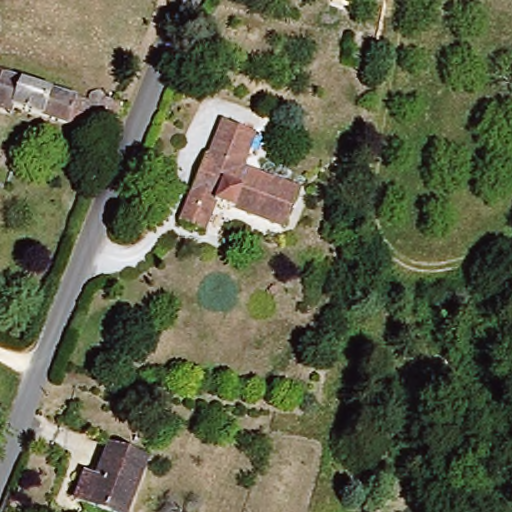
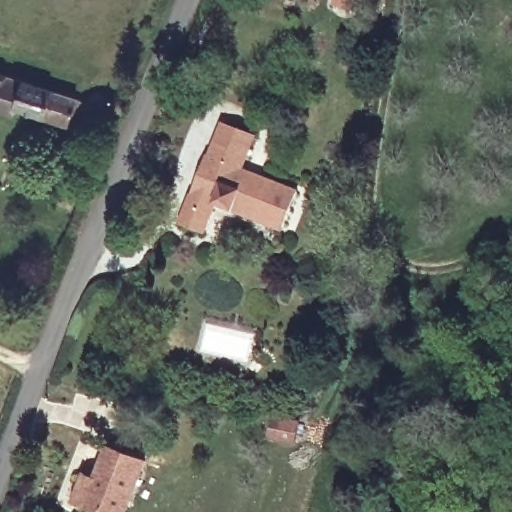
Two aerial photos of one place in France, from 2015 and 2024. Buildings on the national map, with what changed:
unchanged [(10,103),(7,108),(0,106),(0,73),(71,94),(86,98),(78,122),(64,118),(10,103)]
unchanged [(249,167),(304,187),(290,225),(221,200),(212,227),(188,218),(210,150),(214,151),(223,121),(260,135),(249,167)]
unchanged [(0,238),(0,205),(12,231),(0,238)]
unchanged [(127,512),(105,512),(79,503),(88,478),(97,479),(110,450),(146,462),(127,512)]

